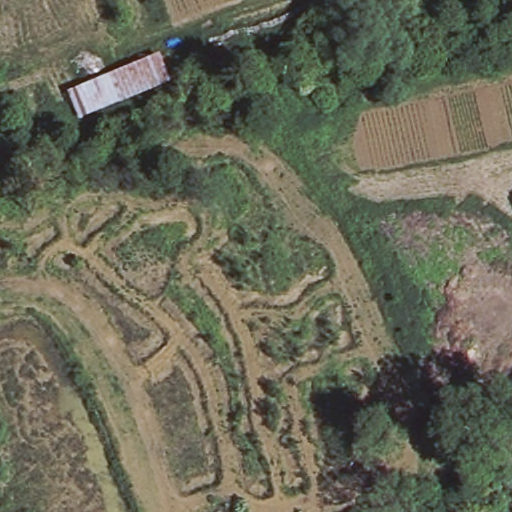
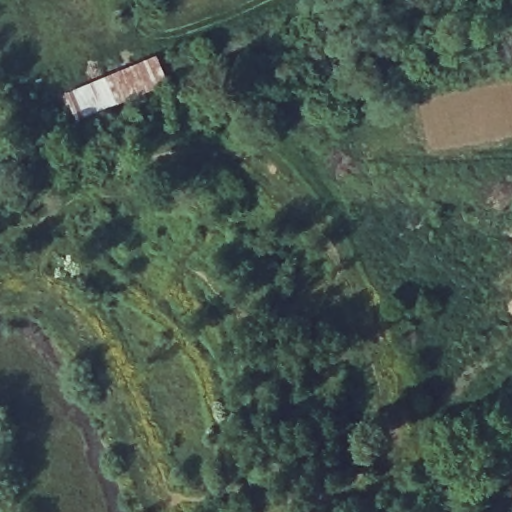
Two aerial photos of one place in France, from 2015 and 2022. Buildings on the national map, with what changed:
unchanged [(158,50),(168,80),(77,119),(67,90),(158,50)]

